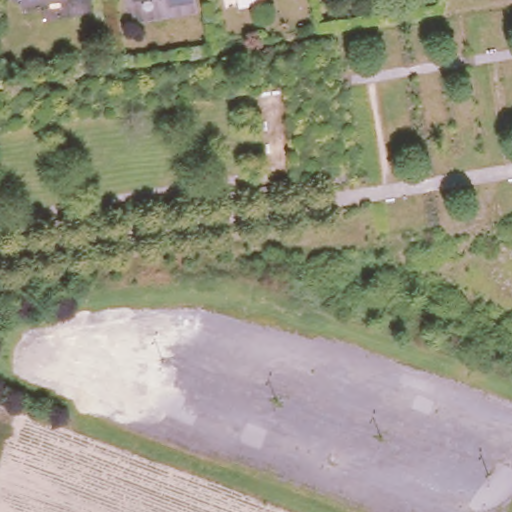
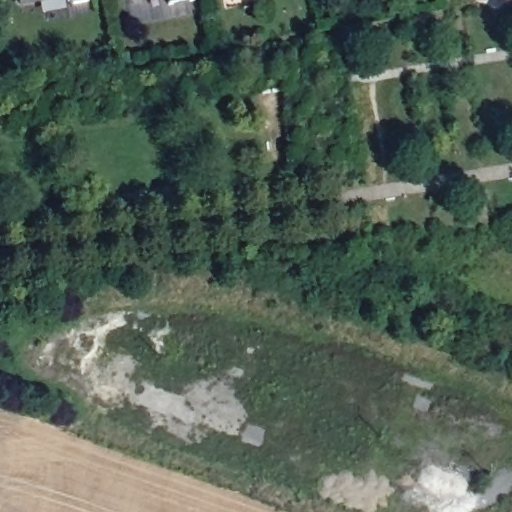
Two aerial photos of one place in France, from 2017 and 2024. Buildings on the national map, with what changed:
unchanged [(67,10),(60,5),(59,1),(20,8),(0,0),(87,0),(82,7),(67,10)]
unchanged [(167,6),(166,0),(193,0),(193,1),(167,6)]

